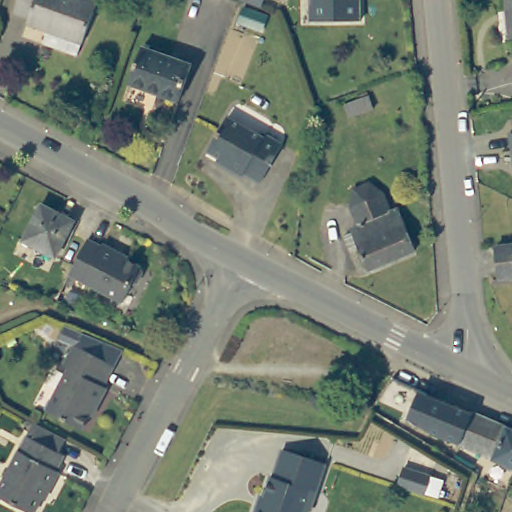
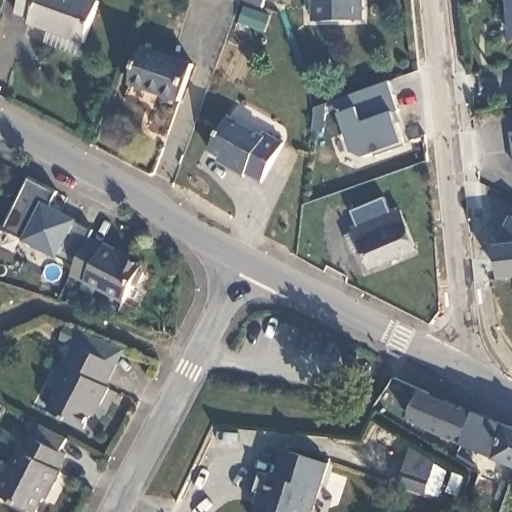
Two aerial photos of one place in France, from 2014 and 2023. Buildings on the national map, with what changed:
unchanged [(52,45),(58,29),(32,18),(33,12),(17,5),(19,0),(100,0),(81,52),(52,45)]
unchanged [(244,0),(264,0),(262,5),(244,0)]
unchanged [(360,0),(361,16),(322,17),(312,17),(312,0),(360,0)]
unchanged [(510,37),(509,0),(512,0),(512,37),(510,37)]
unchanged [(266,14),(261,29),(237,20),(242,6),(266,14)]
unchanged [(179,57),(194,62),(179,99),(132,84),(144,46),(179,57)]
new [(334,99),(388,81),(400,111),(402,120),(397,121),(405,144),(364,158),(352,152),(338,114),(334,99)]
demolished [(377,104),(346,113),(342,96),(372,87),(377,104)]
unchanged [(220,158),(210,153),(228,116),(266,135),(270,131),(282,140),(262,183),(249,176),(246,182),(227,171),(217,164),(220,158)]
unchanged [(386,197),(391,212),(359,225),(352,211),(386,197)]
unchanged [(77,219),(58,255),(26,238),(45,202),(77,219)]
unchanged [(370,270),(352,228),(359,225),(393,211),(399,209),(418,251),(370,270)]
new [(500,242),(511,216),(512,217),(512,274),(501,273),(500,242)]
unchanged [(84,251),(91,238),(104,245),(106,242),(122,251),(121,254),(143,265),(146,272),(140,282),(133,284),(125,301),(73,274),(84,251)]
demolished [(501,273),(500,242),(512,242),(512,274),(501,273)]
unchanged [(107,394),(99,411),(96,410),(82,436),(47,417),(68,375),(63,373),(73,353),(60,346),(66,334),(121,359),(114,372),(104,393),(107,394)]
unchanged [(437,428),(452,396),(512,428),(512,468),(437,428)]
unchanged [(61,453),(67,456),(37,512),(33,512),(0,494),(0,485),(33,424),(67,441),(61,453)]
unchanged [(326,460),(316,488),(310,487),(300,512),(250,512),(254,500),(259,501),(271,474),(275,474),(285,446),(326,460)]
unchanged [(400,462),(427,470),(422,487),(395,478),(400,462)]

